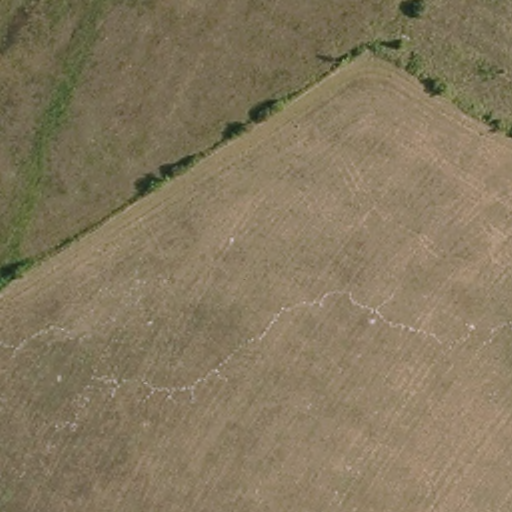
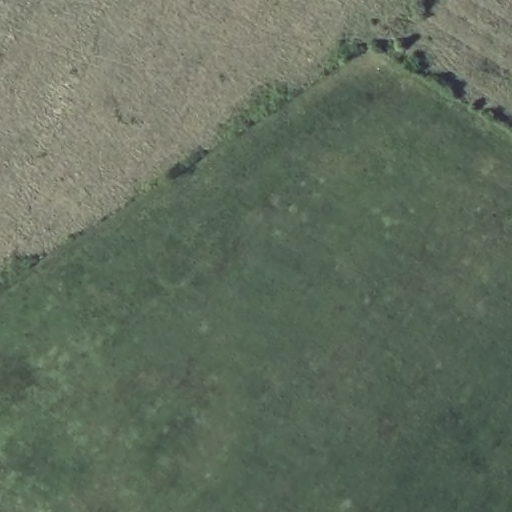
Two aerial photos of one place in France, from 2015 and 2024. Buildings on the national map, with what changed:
[]

